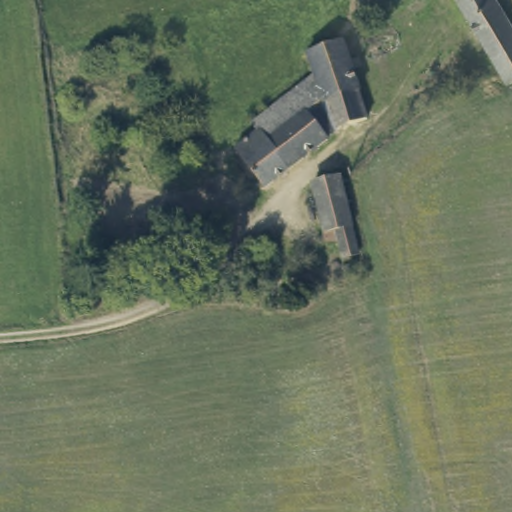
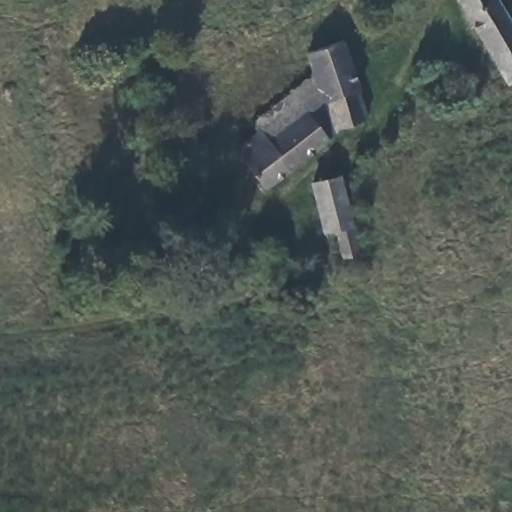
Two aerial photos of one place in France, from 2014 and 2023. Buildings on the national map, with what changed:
unchanged [(502,5),(512,23),(512,82),(510,83),(461,0),(498,0),(502,5)]
unchanged [(337,128),(337,132),(268,188),(262,181),(236,149),(258,131),(252,124),(316,78),(307,56),(337,44),(343,42),(366,94),(361,96),(371,121),(337,128)]
unchanged [(344,258),(337,231),(324,234),(314,185),(343,176),(362,254),(344,258)]

